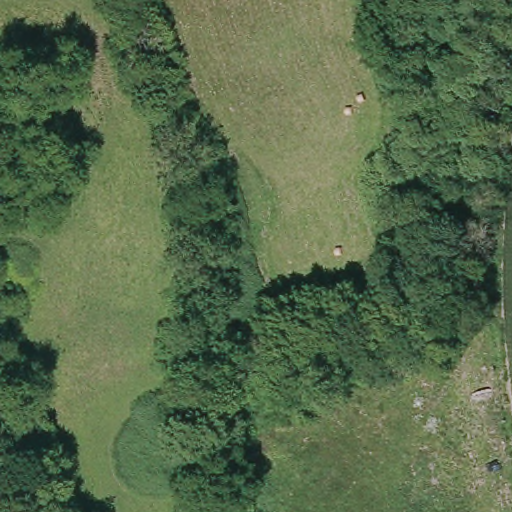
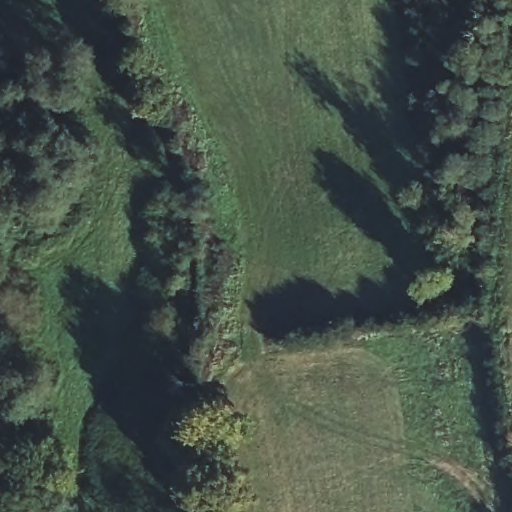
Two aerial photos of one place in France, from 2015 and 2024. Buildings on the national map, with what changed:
[]

